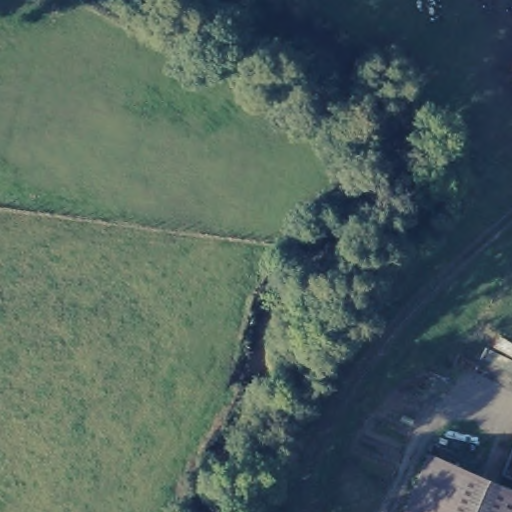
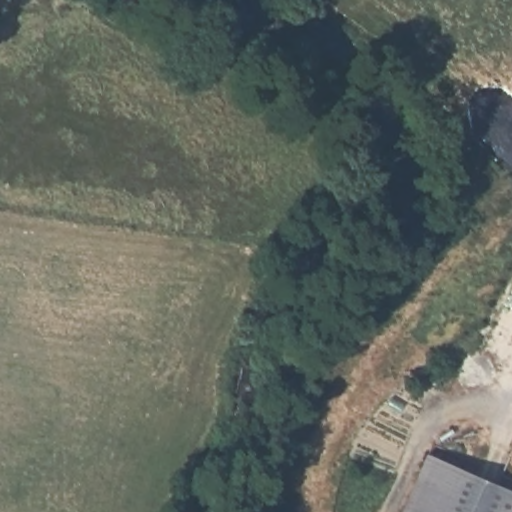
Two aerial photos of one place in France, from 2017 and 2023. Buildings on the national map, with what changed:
unchanged [(404,512),(430,449),(512,482),(512,512),(404,512)]

